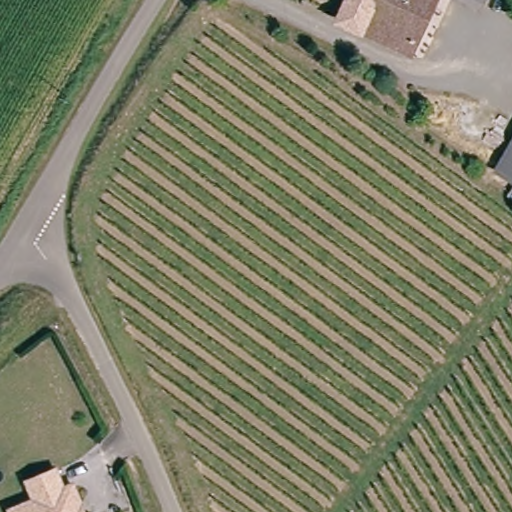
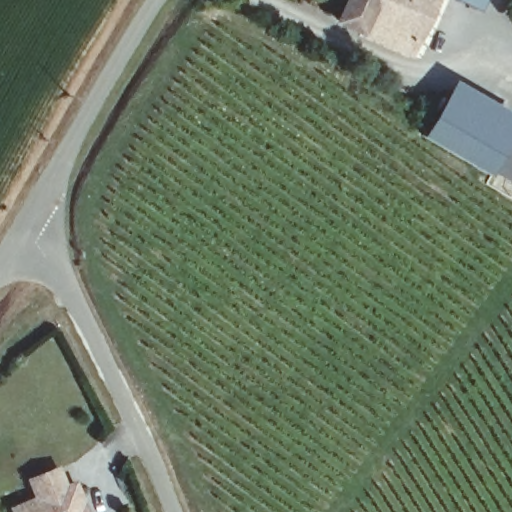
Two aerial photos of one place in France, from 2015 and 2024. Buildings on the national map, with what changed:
unchanged [(412,49),(338,10),(343,0),(437,0),(412,49)]
unchanged [(469,14),(440,0),(476,0),(469,14)]
new [(512,112),(512,142),(498,166),(495,173),(493,176),(422,136),(456,79),(512,112)]
demolished [(453,103),(512,138),(512,142),(498,166),(435,132),(453,103)]
unchanged [(495,173),(498,166),(512,142),(512,183),(510,182),(495,173)]
unchanged [(29,493),(22,475),(25,474),(53,464),(60,481),(70,477),(84,512),(11,512),(7,502),(29,493)]

